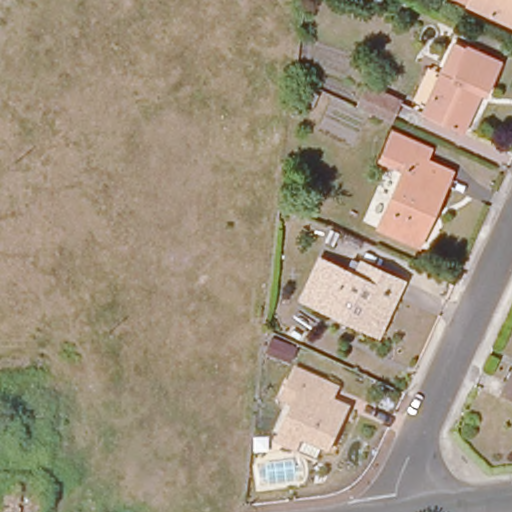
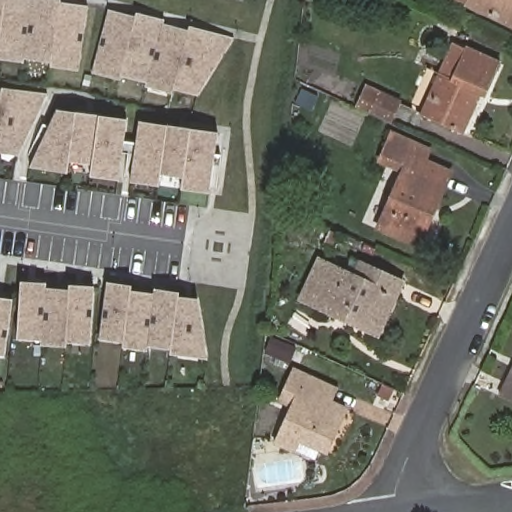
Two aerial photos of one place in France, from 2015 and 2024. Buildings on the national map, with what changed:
new [(88,6),(78,71),(50,69),(50,65),(26,60),(24,64),(0,60),(0,0),(61,0),(61,2),(88,6)]
unchanged [(455,0),(512,0),(512,30),(468,10),(470,8),(455,1),(455,0)]
new [(108,14),(134,21),(135,16),(163,23),(162,28),(188,36),(188,31),(215,38),(233,38),(202,87),(179,80),(177,84),(151,77),(151,74),(124,66),(123,70),(96,63),(108,14)]
unchanged [(480,93),(462,133),(422,114),(455,42),(500,63),(486,96),(480,93)]
new [(48,93),(19,156),(0,153),(0,91),(2,91),(3,87),(48,93)]
unchanged [(366,91),(400,106),(391,128),(357,112),(366,91)]
new [(121,169),(36,156),(59,114),(76,116),(76,113),(100,115),(100,120),(126,123),(121,169)]
new [(210,193),(182,189),(184,178),(160,175),(159,185),(131,181),(140,126),(166,130),(166,126),(193,129),(192,133),(217,136),(210,193)]
unchanged [(378,233),(403,177),(380,166),(387,150),(393,136),(431,154),(425,167),(450,178),(418,251),(378,233)]
unchanged [(397,292),(391,307),(382,303),(369,334),(333,318),(331,322),(297,307),(315,270),(350,286),(356,273),(397,292)]
new [(47,284),(47,290),(70,292),(71,286),(95,288),(91,336),(66,335),(66,341),(41,340),(43,333),(19,332),(21,284),(47,284)]
new [(133,286),(131,291),(155,295),(155,291),(180,294),(179,299),(199,302),(207,353),(171,348),(172,343),(150,339),(149,345),(124,340),(125,335),(101,332),(107,284),(133,286)]
new [(0,347),(0,297),(13,299),(6,348),(0,347)]
unchanged [(501,396),(512,372),(512,401),(501,396)]
unchanged [(321,460),(312,456),(309,464),(271,448),(287,412),(275,406),(289,375),(332,394),(326,407),(334,411),(324,436),(330,439),(321,460)]
demolished [(20,490),(43,489),(43,512),(0,512),(0,487),(21,487),(20,490)]

